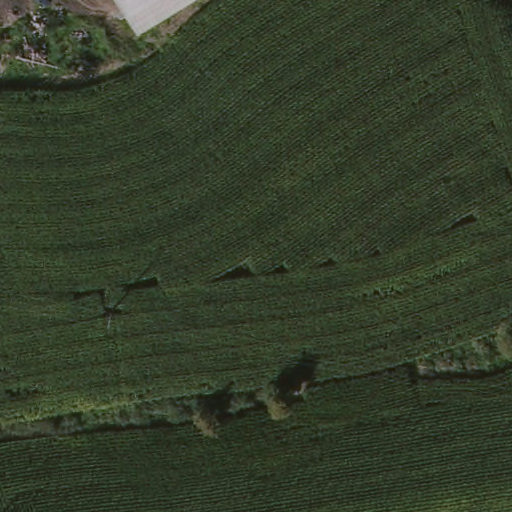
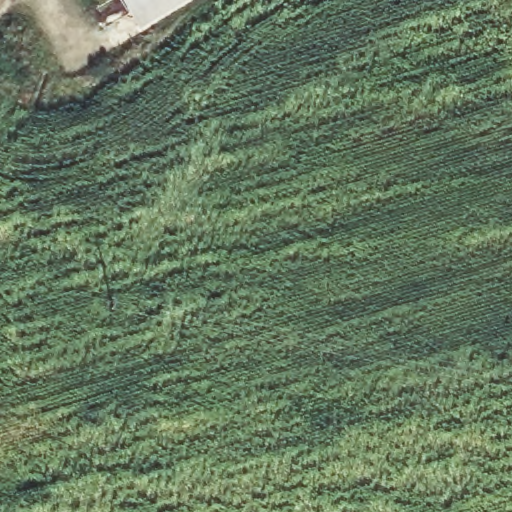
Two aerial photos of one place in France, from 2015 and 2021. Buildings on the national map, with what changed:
unchanged [(118,0),(191,0),(139,33),(118,0)]

